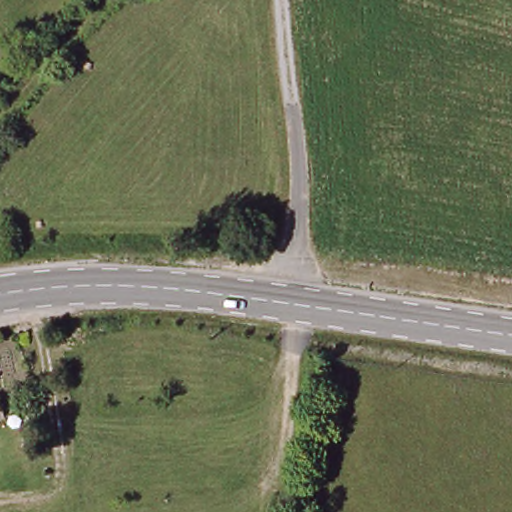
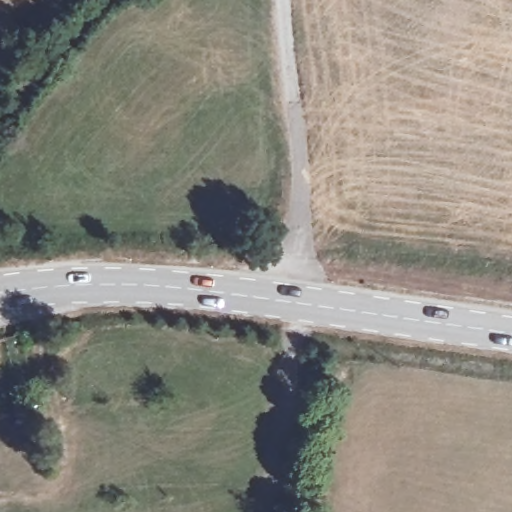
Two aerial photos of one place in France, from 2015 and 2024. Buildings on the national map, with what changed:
unchanged [(7,422),(0,423),(0,395),(2,395),(7,422)]

